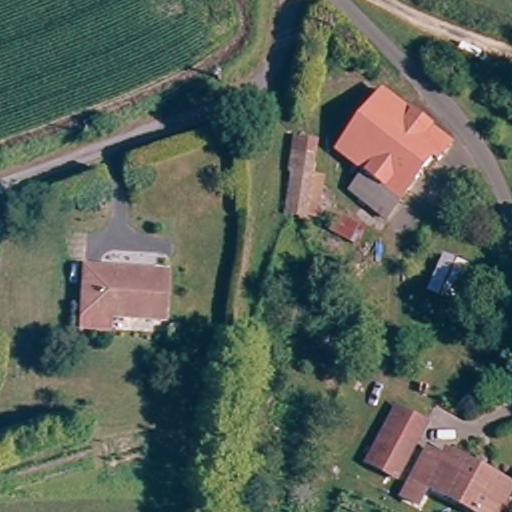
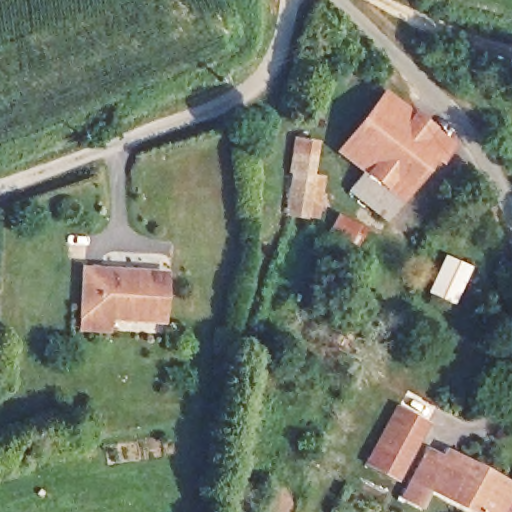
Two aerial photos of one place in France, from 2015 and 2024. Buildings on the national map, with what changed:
unchanged [(327,71),(318,77),(311,65),(320,59),(327,71)]
unchanged [(453,147),(441,161),(437,158),(403,199),(362,165),(340,148),(386,92),(453,147)]
unchanged [(306,227),(283,225),(290,151),(313,153),(306,227)]
unchanged [(388,217),(349,185),(362,165),(403,199),(388,217)]
unchanged [(462,273),(446,310),(420,298),(436,262),(462,273)]
unchanged [(165,321),(127,314),(125,325),(79,317),(90,267),(172,281),(165,321)]
unchanged [(384,452),(400,416),(404,408),(428,419),(425,427),(407,463),(384,452)]
unchanged [(499,512),(487,512),(434,488),(424,507),(405,498),(426,451),(446,460),(448,455),(512,484),(499,512)]

